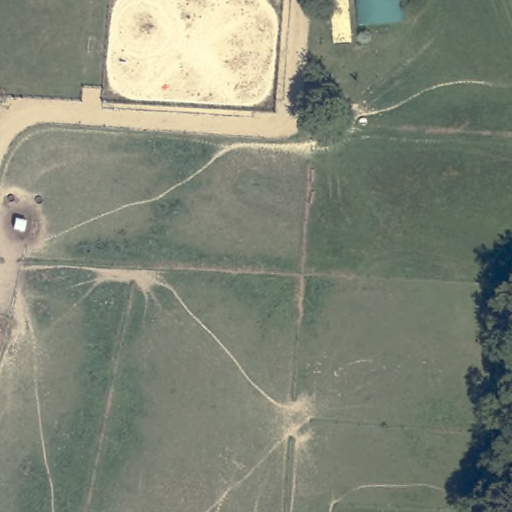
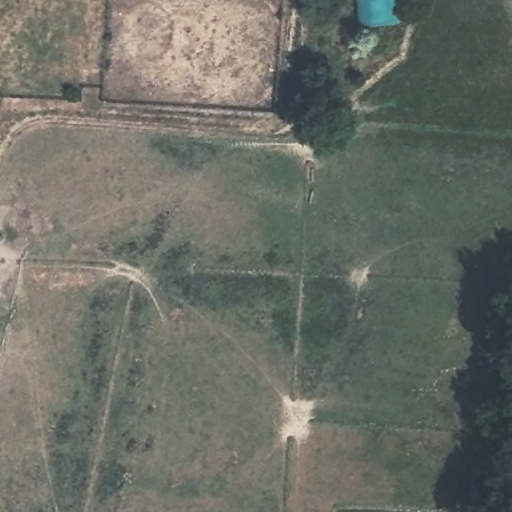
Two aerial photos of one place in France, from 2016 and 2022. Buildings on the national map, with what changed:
unchanged [(398,19),(357,22),(355,0),(397,0),(398,19)]

